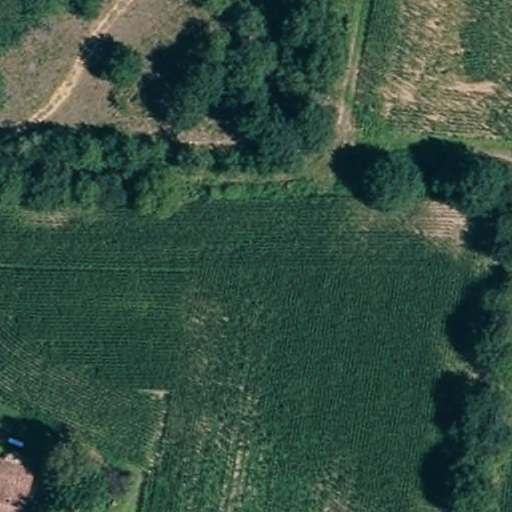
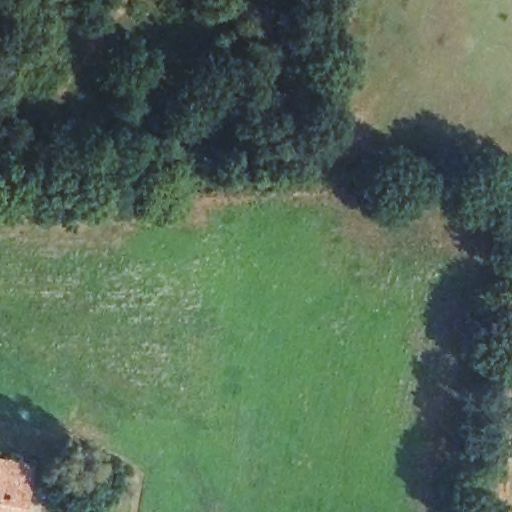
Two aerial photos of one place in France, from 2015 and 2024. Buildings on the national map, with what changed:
unchanged [(0,512),(0,458),(2,458),(36,464),(25,512),(0,512)]

